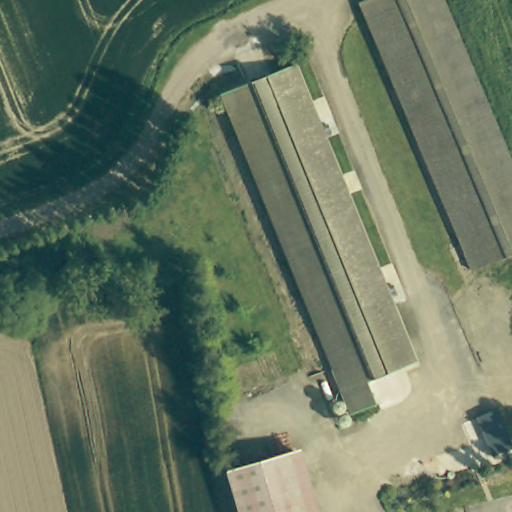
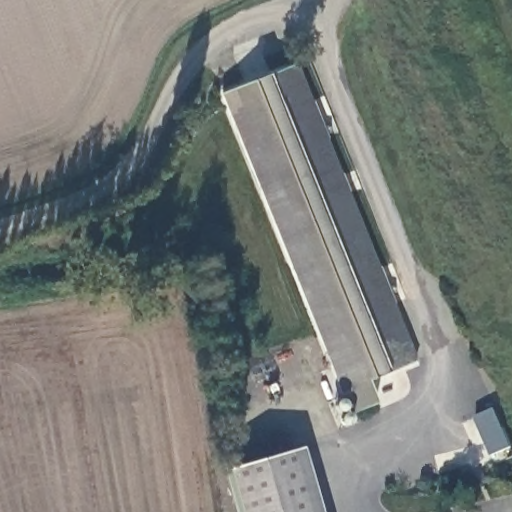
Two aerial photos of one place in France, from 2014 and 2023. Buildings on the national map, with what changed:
demolished [(512,170),(512,251),(468,269),(356,1),(359,0),(439,0),(512,170)]
unchanged [(225,97),(295,69),(413,366),(365,386),(374,408),(350,418),(225,97)]
unchanged [(319,512),(237,512),(224,470),(300,448),(319,512)]

